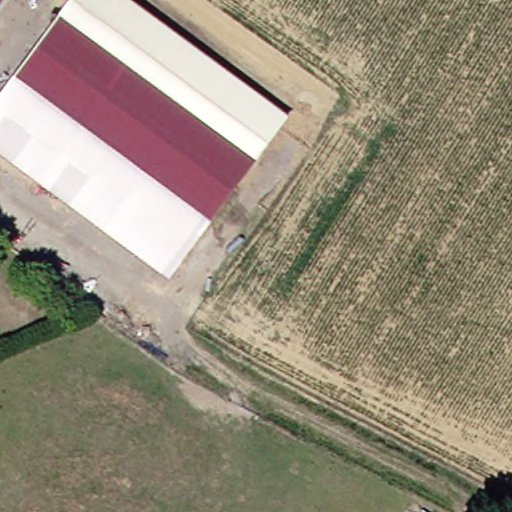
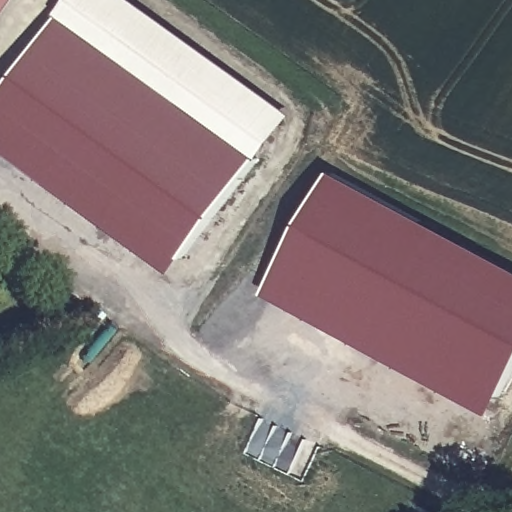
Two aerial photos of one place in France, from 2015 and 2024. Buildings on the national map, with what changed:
unchanged [(0,0),(5,0),(0,7),(0,0)]
unchanged [(0,132),(0,103),(47,40),(77,0),(99,0),(280,131),(241,183),(180,265),(0,132)]
new [(481,419),(262,302),(327,180),(512,275),(512,361),(481,419)]

